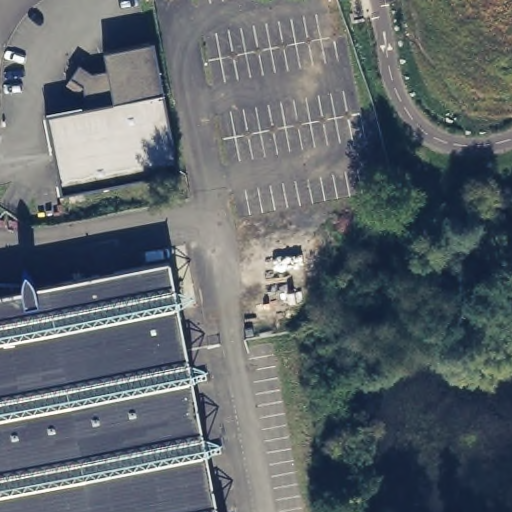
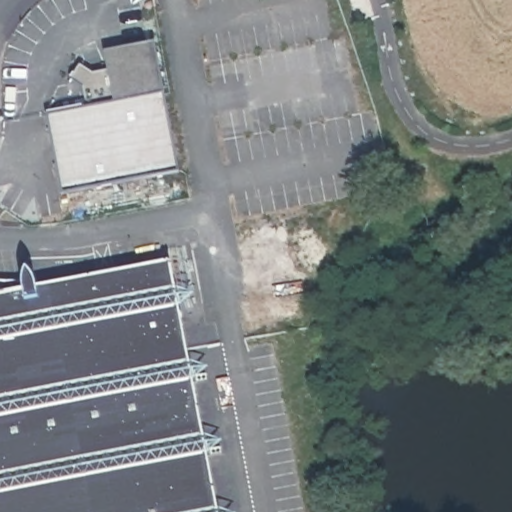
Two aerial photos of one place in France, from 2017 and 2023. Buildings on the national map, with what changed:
unchanged [(60,189),(45,110),(111,99),(100,46),(151,34),(162,88),(177,167),(60,189)]
unchanged [(219,512),(0,512),(0,289),(167,257),(219,512)]

